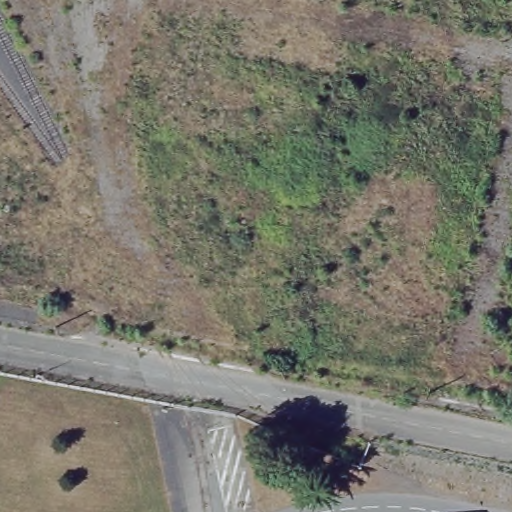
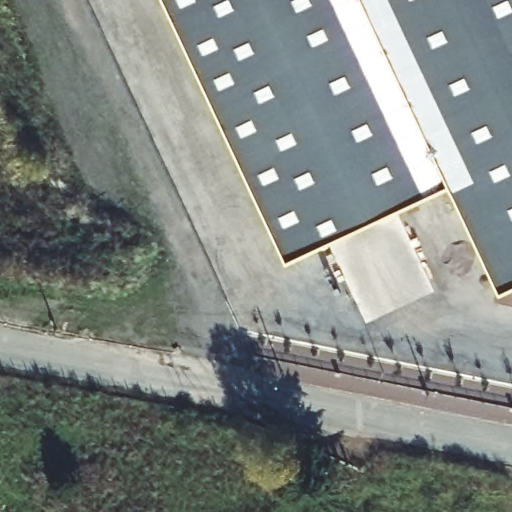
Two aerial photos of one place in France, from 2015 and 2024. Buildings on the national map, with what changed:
new [(447,191),(285,267),(160,0),(512,0),(512,294),(499,301),(447,191)]

